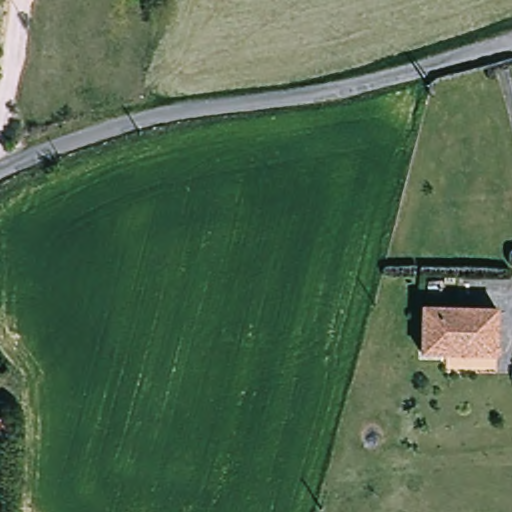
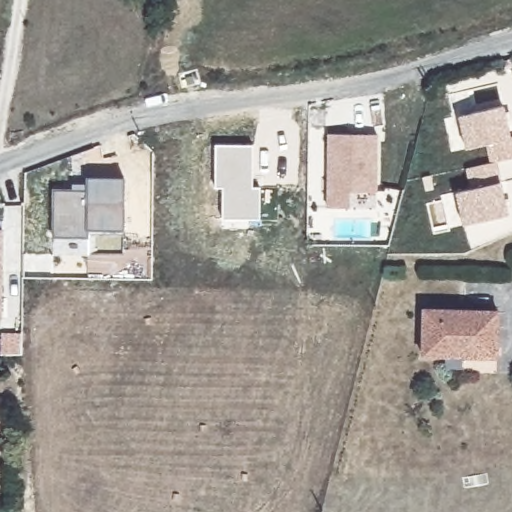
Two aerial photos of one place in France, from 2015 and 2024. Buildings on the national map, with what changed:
new [(504,104),(512,137),(512,158),(497,161),(490,163),(484,143),(465,148),(459,115),(504,104)]
new [(378,134),(378,192),(350,192),(350,207),(327,208),(327,134),(378,134)]
new [(252,144),(252,187),(260,187),(260,220),(222,218),(221,188),(215,188),(216,144),(252,144)]
new [(490,163),(497,161),(501,182),(509,214),(462,223),(455,191),(469,188),(466,167),(490,163)]
new [(71,188),(71,183),(85,183),(85,177),(125,177),(124,230),(88,230),(88,237),(51,237),(52,188),(71,188)]
new [(0,229),(2,229),(1,297),(1,316),(0,317),(0,229)]
unchanged [(446,356),(422,352),(430,304),(505,317),(498,359),(497,364),(446,356)]
unchanged [(13,445),(0,444),(0,434),(0,430),(14,432),(13,445)]

